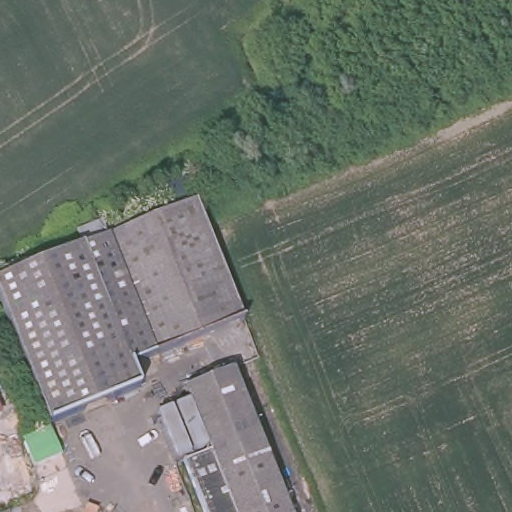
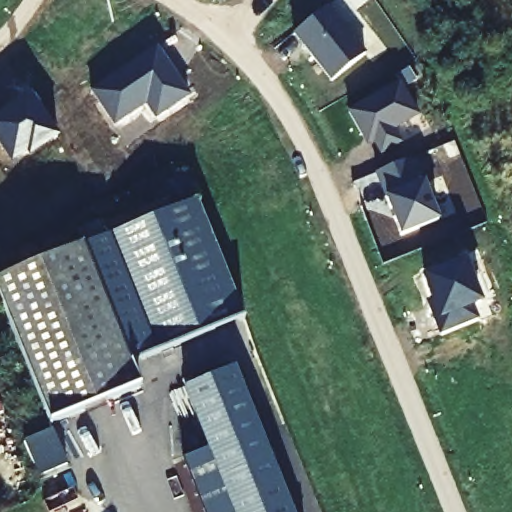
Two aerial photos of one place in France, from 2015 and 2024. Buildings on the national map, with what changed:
new [(325,5),(364,52),(331,80),(292,31),(325,5)]
new [(154,44),(188,94),(154,116),(145,101),(113,123),(90,89),(154,44)]
new [(398,81),(417,114),(392,129),(399,141),(380,152),(369,132),(362,137),(348,111),(398,81)]
new [(17,105),(14,101),(29,91),(57,132),(28,151),(26,147),(11,158),(0,142),(0,118),(17,105)]
new [(411,156),(437,220),(399,234),(394,217),(395,216),(391,206),(389,207),(374,171),(411,156)]
unchanged [(153,346),(107,235),(196,200),(243,316),(154,350),(153,346)]
unchanged [(153,346),(154,350),(129,360),(138,383),(46,417),(0,301),(0,278),(107,235),(153,346)]
new [(463,261),(478,300),(470,302),(477,320),(439,335),(429,307),(436,305),(424,277),(463,261)]
unchanged [(192,378),(233,362),(292,512),(233,512),(208,447),(182,382),(192,378)]
unchanged [(3,412),(0,414),(0,406),(3,412)]
unchanged [(221,512),(196,451),(208,447),(233,512),(221,512)]
unchanged [(205,512),(183,456),(196,451),(221,512),(205,512)]

